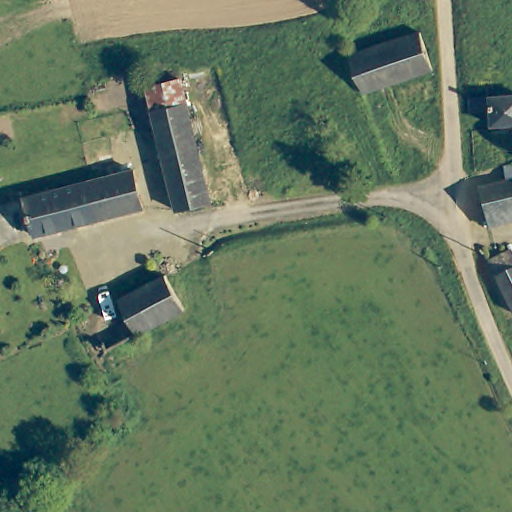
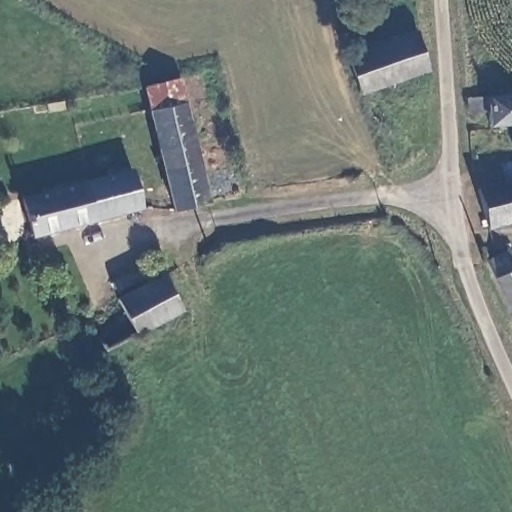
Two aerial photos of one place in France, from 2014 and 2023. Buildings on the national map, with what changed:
unchanged [(431,69),(361,91),(347,54),(418,33),(431,69)]
unchanged [(205,197),(171,205),(141,82),(176,74),(199,172),(205,197)]
unchanged [(494,112),(474,113),(473,97),(512,96),(512,124),(494,125),(494,112)]
unchanged [(478,188),(476,174),(512,164),(512,221),(488,227),(478,188)]
unchanged [(27,230),(18,198),(68,184),(98,176),(127,168),(137,208),(28,236),(27,230)]
unchanged [(512,303),(489,255),(509,245),(512,251),(512,303)]
unchanged [(112,299),(159,274),(178,309),(131,333),(131,334),(112,299)]

